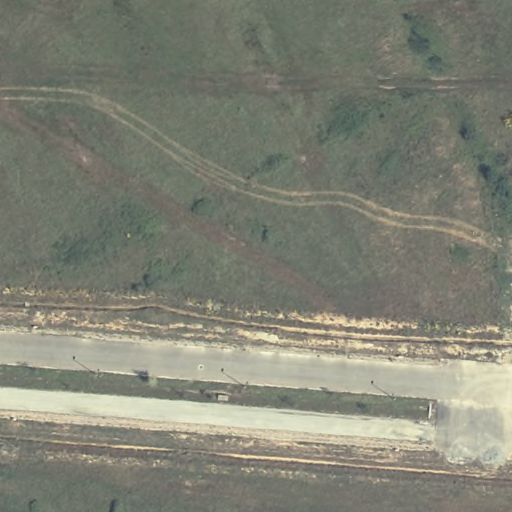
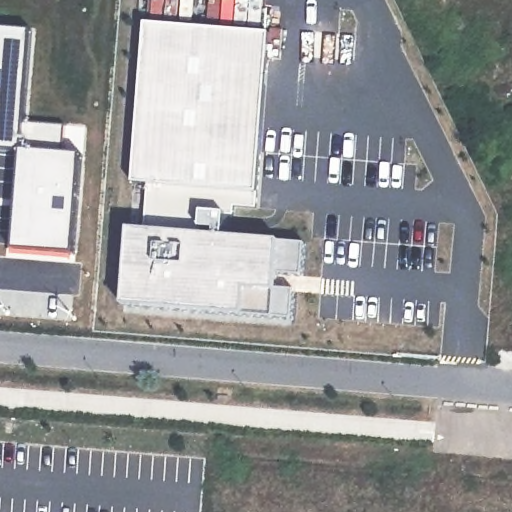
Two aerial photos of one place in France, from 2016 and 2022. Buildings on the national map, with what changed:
new [(130,229),(150,231),(151,185),(134,183),(147,24),(274,34),(260,193),(259,211),(238,209),(237,216),(227,215),(225,237),(279,242),(306,244),(303,277),(279,275),(277,289),(295,292),(293,320),(244,317),(123,308),(130,229)]

